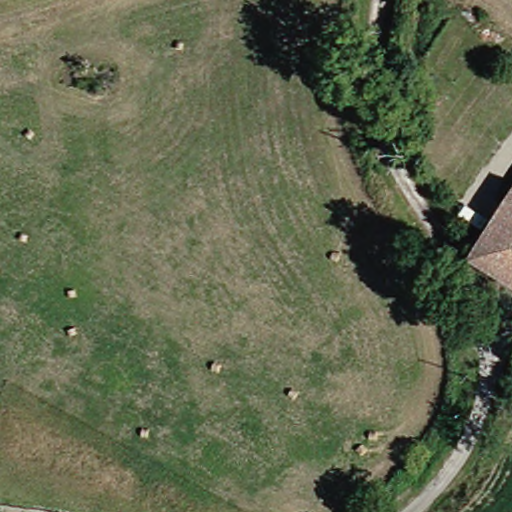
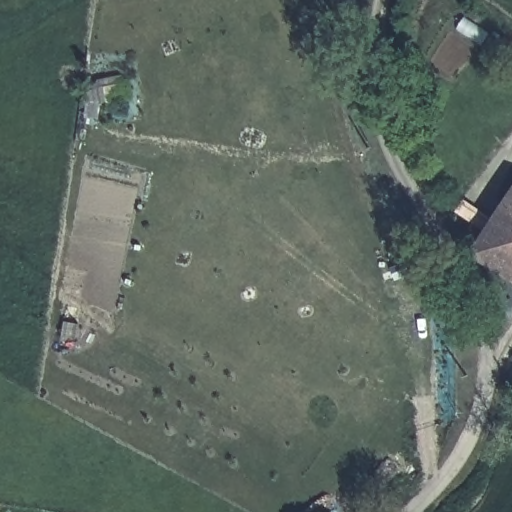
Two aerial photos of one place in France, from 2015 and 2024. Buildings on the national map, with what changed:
unchanged [(475,250),(512,192),(512,273),(475,250)]

